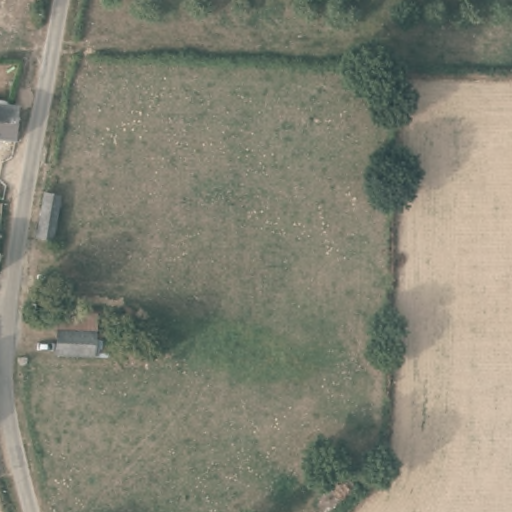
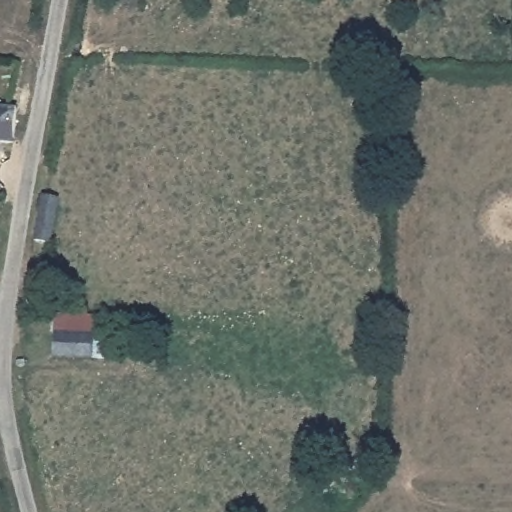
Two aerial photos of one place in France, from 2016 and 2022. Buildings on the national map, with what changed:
unchanged [(0,105),(22,106),(17,140),(0,139),(0,105)]
unchanged [(34,235),(38,199),(53,200),(49,236),(34,235)]
unchanged [(51,358),(55,311),(89,314),(89,330),(97,330),(94,360),(51,358)]

